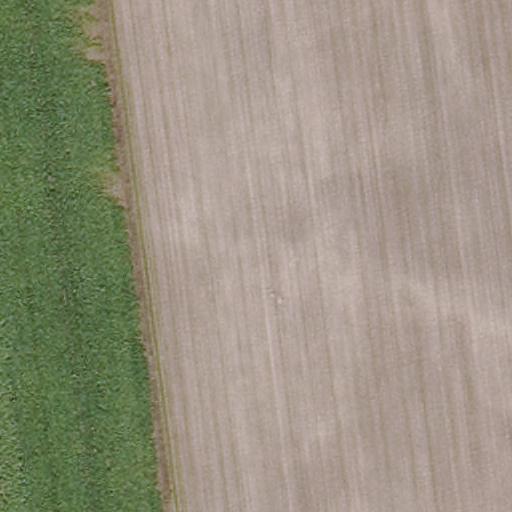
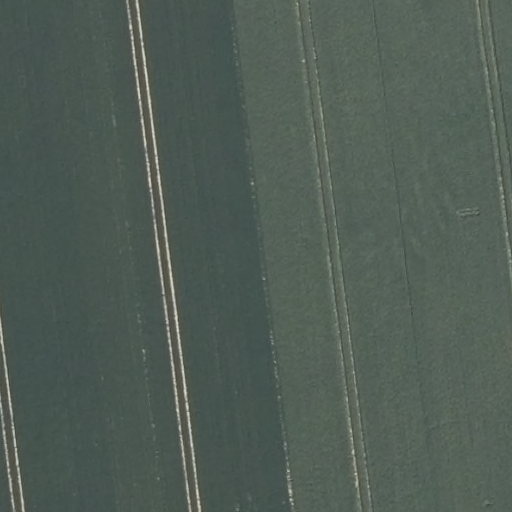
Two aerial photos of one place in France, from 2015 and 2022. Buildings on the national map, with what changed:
[]

